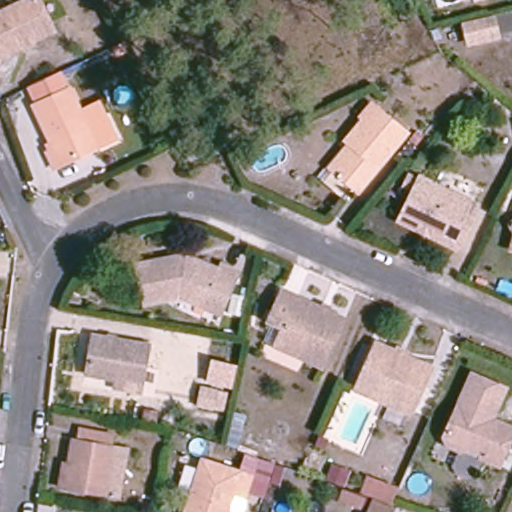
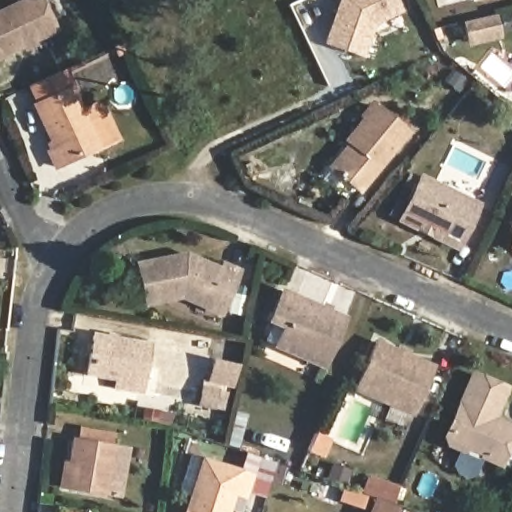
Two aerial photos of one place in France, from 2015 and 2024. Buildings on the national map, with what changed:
unchanged [(23,49),(21,45),(0,56),(0,14),(28,0),(37,0),(48,23),(51,30),(43,34),(29,41),(31,45),(23,49)]
new [(339,0),(391,0),(396,10),(370,23),(362,55),(327,47),(335,12),(339,0)]
unchanged [(492,16),(497,40),(464,47),(460,23),(492,16)]
unchanged [(48,154),(54,151),(26,90),(64,71),(81,113),(99,105),(115,141),(54,168),(48,154)]
unchanged [(320,175),(352,142),(348,138),(378,107),(409,136),(358,189),(354,185),(344,196),(320,175)]
unchanged [(224,109),(234,133),(202,145),(192,122),(224,109)]
unchanged [(398,214),(418,177),(479,209),(459,247),(430,231),(417,225),(398,214)]
unchanged [(221,264),(237,272),(218,312),(179,294),(143,300),(135,262),(183,253),(190,256),(200,261),(218,270),(221,264)]
unchanged [(319,368),(272,344),(281,327),(266,319),(280,292),(319,311),(322,305),(327,308),(324,314),(342,323),(319,368)]
unchanged [(107,336),(113,337),(112,342),(145,349),(138,386),(132,384),(131,393),(111,389),(113,380),(83,375),(91,338),(106,341),(107,336)]
unchanged [(433,372),(411,416),(356,388),(379,344),(433,372)]
unchanged [(512,438),(499,464),(481,455),(483,451),(469,444),(461,446),(448,439),(444,431),(475,372),(508,389),(493,418),(499,421),(512,427),(512,438)]
unchanged [(199,386),(226,392),(220,414),(193,407),(199,386)]
unchanged [(64,466),(74,468),(78,443),(81,431),(118,439),(116,451),(107,497),(70,489),(60,487),(64,466)]
unchanged [(241,454),(273,464),(261,498),(248,492),(245,500),(234,497),(229,512),(184,512),(204,457),(236,469),(241,454)]
unchanged [(361,496),(367,477),(398,488),(389,507),(387,512),(363,512),(368,498),(361,496)]

